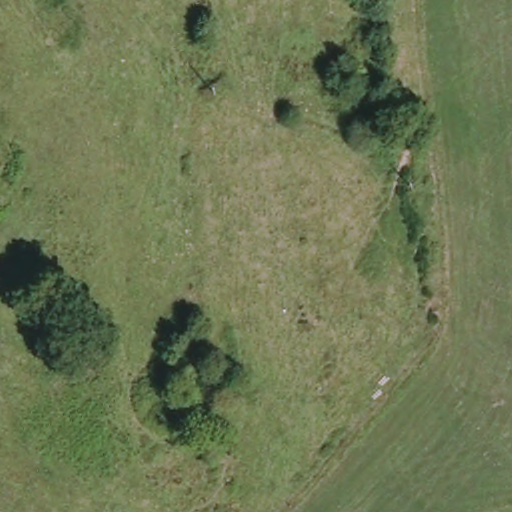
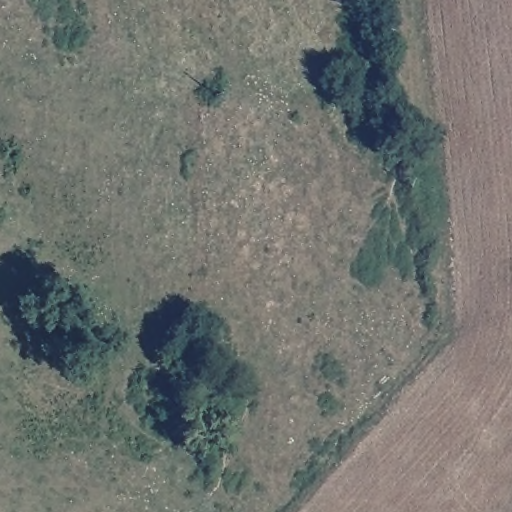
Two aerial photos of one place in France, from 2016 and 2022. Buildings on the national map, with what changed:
unchanged [(221,362),(228,410),(175,416),(169,367),(221,362)]

